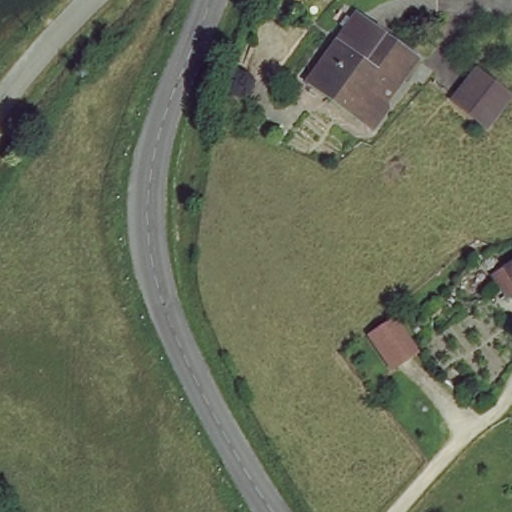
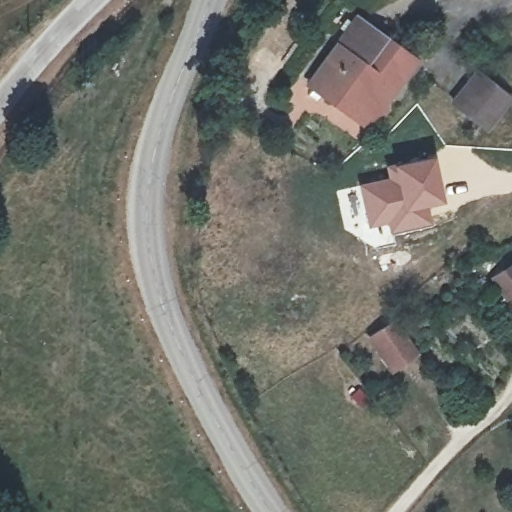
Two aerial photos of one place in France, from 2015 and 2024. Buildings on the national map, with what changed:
unchanged [(349,20),(382,39),(363,68),(332,48),(349,20)]
unchanged [(363,68),(382,39),(413,58),(391,93),(381,88),(372,102),(386,111),(374,132),(304,94),(332,48),(363,68)]
unchanged [(471,71),(475,73),(507,95),(485,124),(450,101),(467,78),(471,71)]
new [(387,176),(384,164),(432,154),(443,200),(429,204),(434,226),(390,236),(387,225),(367,228),(358,184),(387,176)]
unchanged [(512,273),(512,276),(511,274),(512,273)]
unchanged [(395,321),(418,353),(393,371),(370,338),(395,321)]

